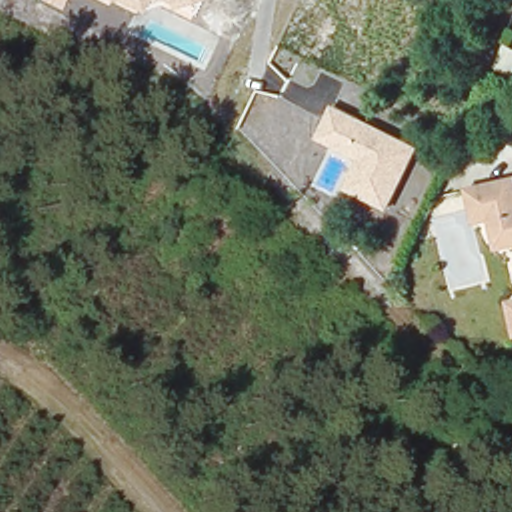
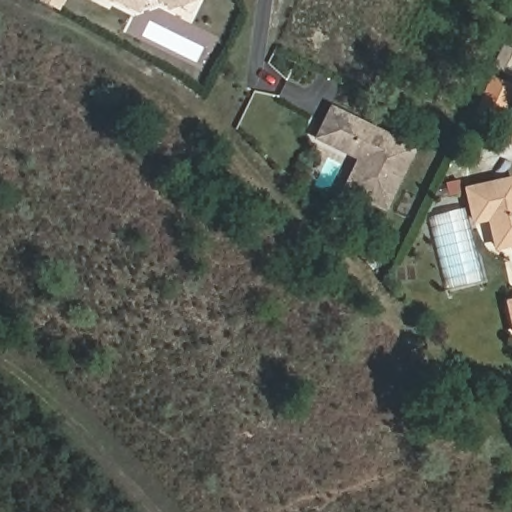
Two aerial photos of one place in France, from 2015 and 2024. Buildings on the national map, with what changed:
unchanged [(140,13),(114,1),(112,3),(107,0),(146,0),(140,13)]
unchanged [(167,11),(166,4),(157,0),(199,0),(167,11)]
unchanged [(387,210),(345,190),(359,159),(316,138),(331,105),(418,147),(387,210)]
unchanged [(500,248),(493,220),(477,222),(470,188),(512,179),(512,245),(500,248)]
unchanged [(511,301),(512,301),(512,306),(511,301)]

